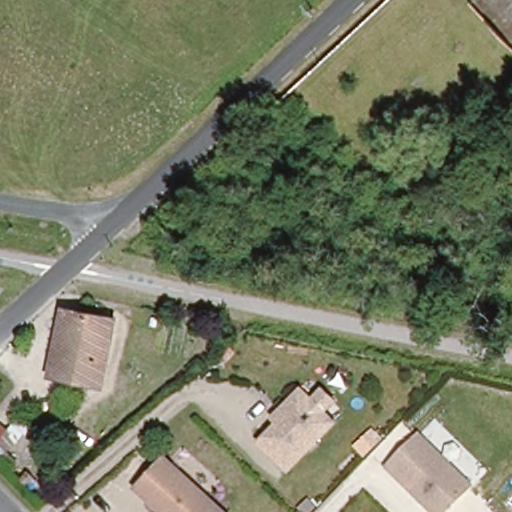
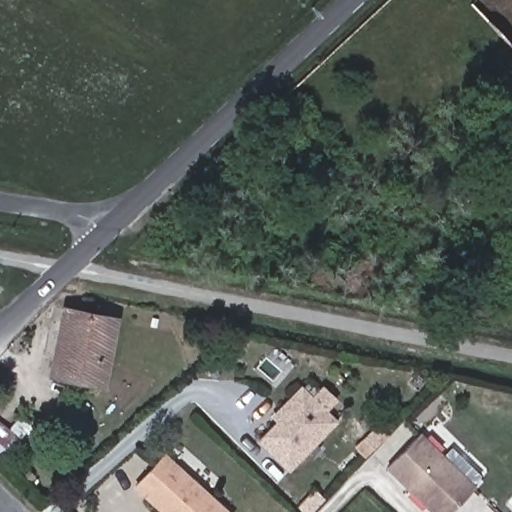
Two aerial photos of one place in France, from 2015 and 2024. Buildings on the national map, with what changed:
unchanged [(109,318),(99,382),(49,374),(60,310),(109,318)]
unchanged [(311,404),(321,394),(330,403),(321,413),(332,424),(290,470),(262,444),(279,424),(274,419),(279,413),(298,392),(311,404)]
unchanged [(454,512),(436,512),(391,473),(420,437),(477,486),(454,512)]
unchanged [(231,512),(174,512),(173,511),(168,509),(164,509),(137,485),(161,454),(231,512)]

